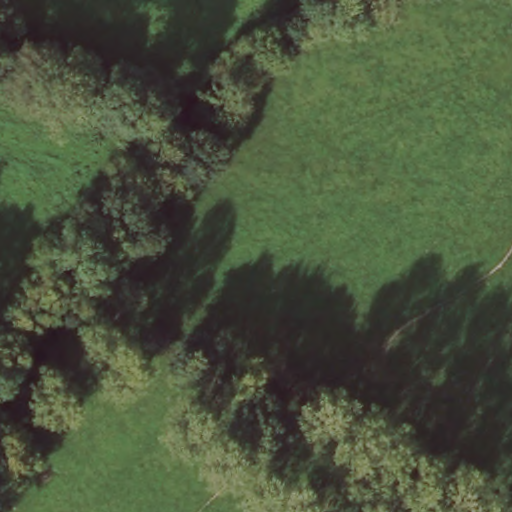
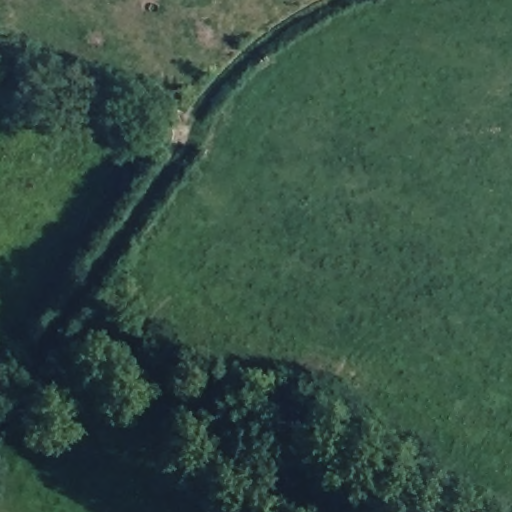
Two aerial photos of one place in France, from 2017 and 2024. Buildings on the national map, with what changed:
[]

